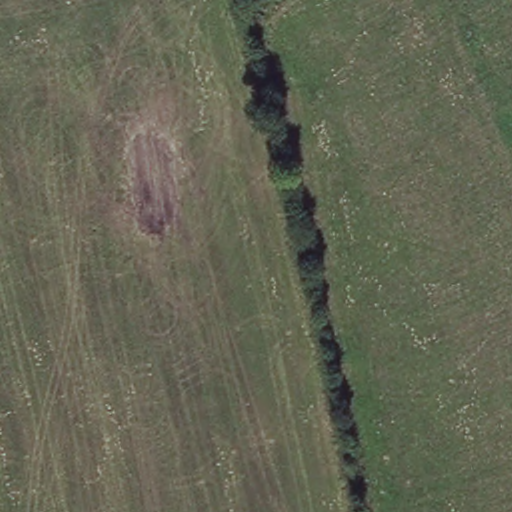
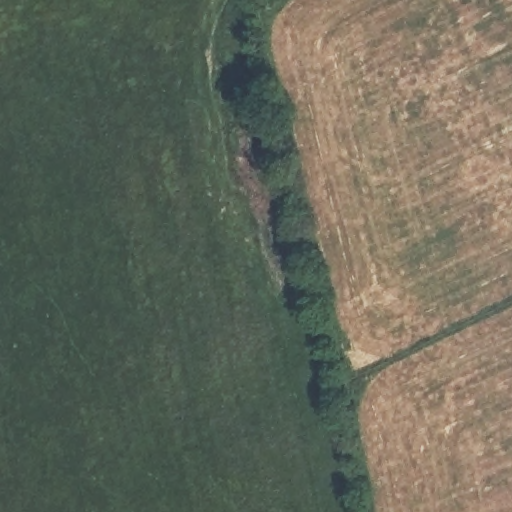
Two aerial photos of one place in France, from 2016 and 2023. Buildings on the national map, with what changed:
[]

